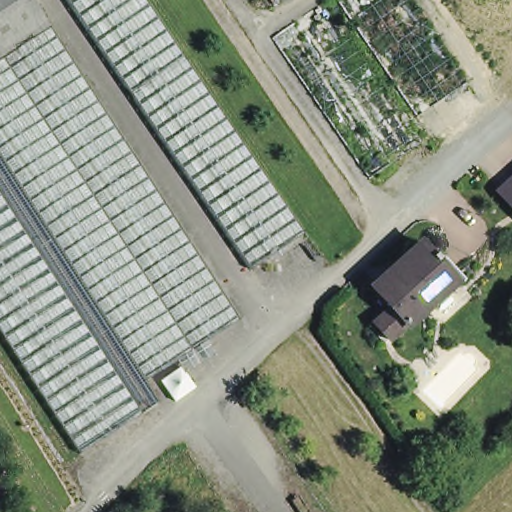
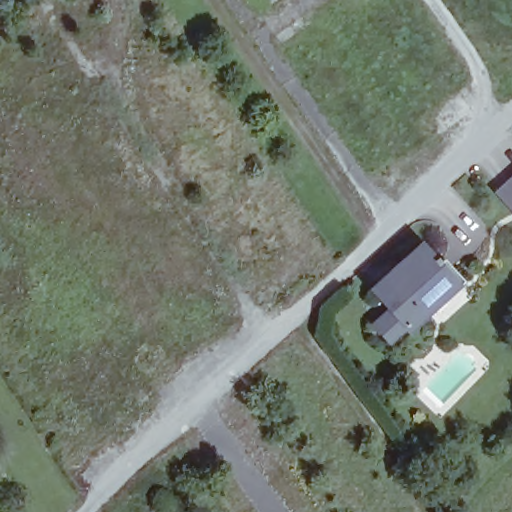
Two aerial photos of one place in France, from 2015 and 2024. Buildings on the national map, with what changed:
demolished [(29,0),(48,30),(0,61),(0,0),(29,0)]
demolished [(249,269),(68,0),(147,0),(304,232),(249,269)]
demolished [(270,0),(290,0),(276,9),(270,0)]
demolished [(302,17),(326,0),(422,142),(399,157),(302,17)]
demolished [(388,0),(453,92),(417,116),(340,0),(388,0)]
demolished [(416,0),(471,80),(453,92),(388,0),(416,0)]
demolished [(437,0),(487,0),(512,37),(512,87),(504,93),(437,0)]
demolished [(512,0),(512,37),(487,0),(512,0)]
demolished [(369,177),(274,36),(302,17),(399,157),(369,177)]
demolished [(48,30),(96,105),(0,190),(0,61),(48,30)]
demolished [(0,198),(0,190),(96,105),(237,325),(143,385),(156,406),(139,417),(0,198)]
unchanged [(512,174),(512,210),(494,190),(512,174)]
demolished [(0,265),(0,198),(139,417),(110,436),(0,265)]
unchanged [(389,341),(369,318),(385,305),(373,287),(424,244),(464,290),(389,341)]
demolished [(0,302),(0,265),(110,436),(93,447),(0,302)]
demolished [(0,338),(0,302),(93,447),(77,458),(0,338)]

